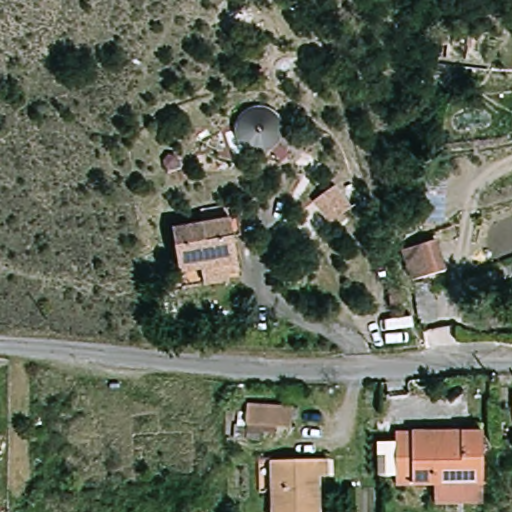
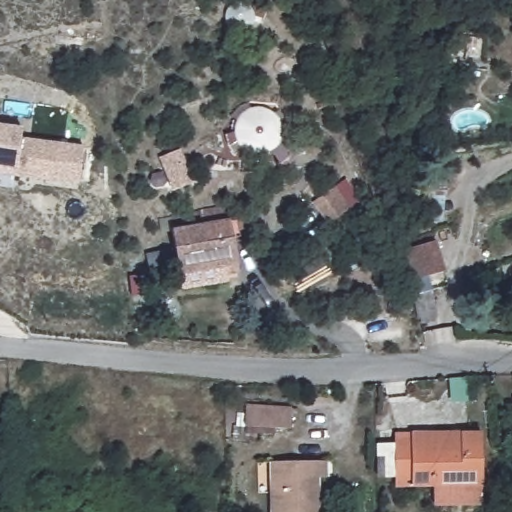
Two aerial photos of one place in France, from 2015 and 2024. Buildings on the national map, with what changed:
unchanged [(240,119),(247,112),(256,109),(264,109),(273,112),(279,118),(283,125),(283,138),(278,146),(272,152),(266,155),(256,155),(248,152),(242,146),(237,138),(237,125),(240,119)]
new [(23,127),(21,139),(85,146),(80,185),(0,175),(0,124),(23,127)]
new [(347,177),(363,200),(350,210),(328,225),(312,202),(334,186),(347,177)]
unchanged [(201,288),(198,266),(176,270),(170,229),(234,220),(240,272),(227,273),(228,285),(201,288)]
unchanged [(413,277),(407,250),(439,240),(447,271),(413,277)]
unchanged [(290,424),(249,422),(250,401),(291,403),(290,424)]
unchanged [(435,506),(435,485),(395,484),(397,425),(422,426),(422,435),(452,436),(453,429),(477,430),(475,486),(474,507),(435,506)]
unchanged [(311,472),(311,491),(318,491),(317,512),(270,512),(272,453),(329,455),(329,472),(311,472)]

